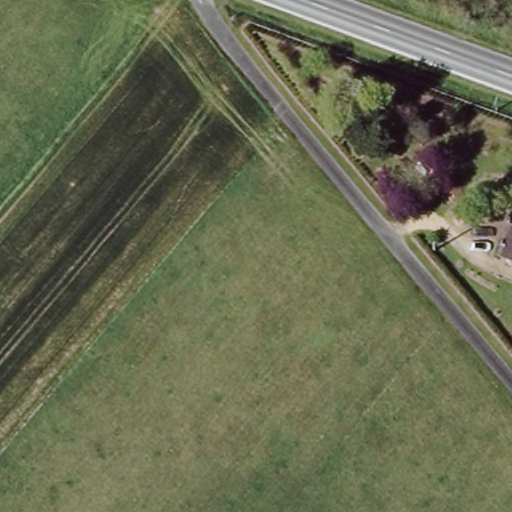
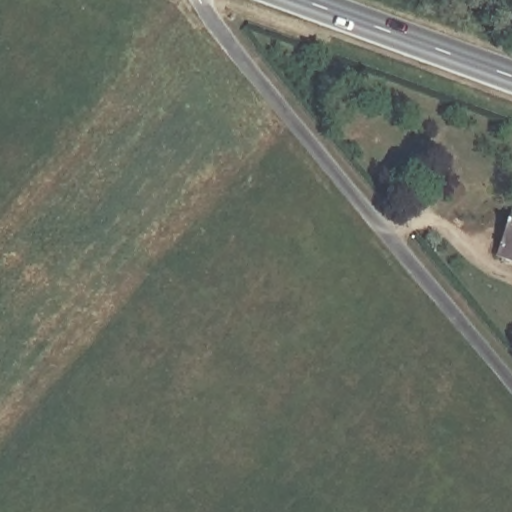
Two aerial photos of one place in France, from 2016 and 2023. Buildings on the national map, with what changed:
unchanged [(512,266),(502,262),(512,232),(512,266)]

